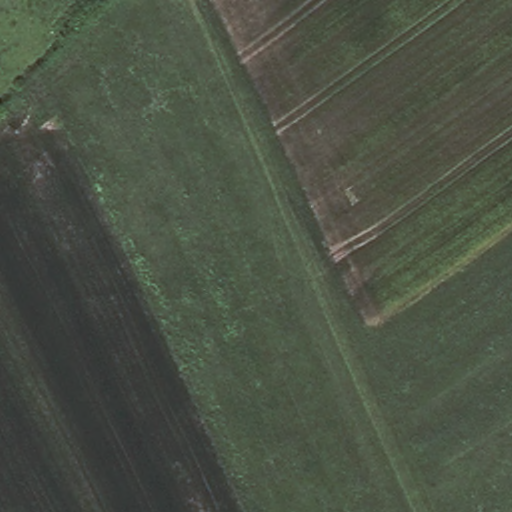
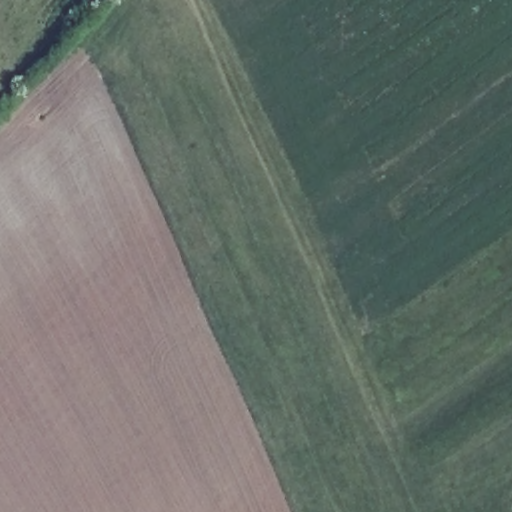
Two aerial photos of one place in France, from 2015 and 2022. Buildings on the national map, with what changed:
[]

